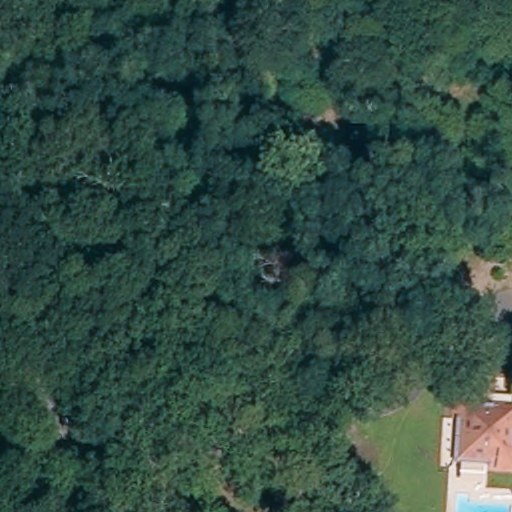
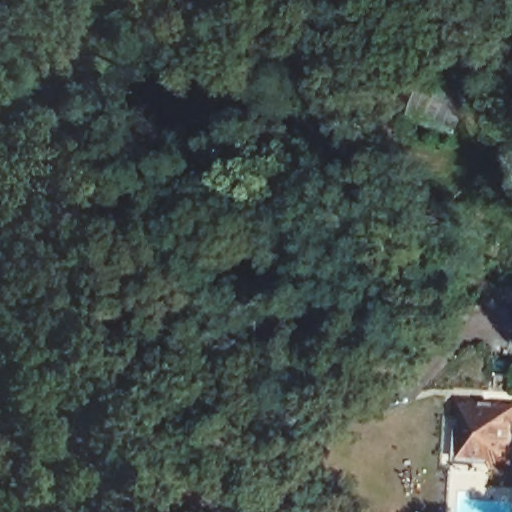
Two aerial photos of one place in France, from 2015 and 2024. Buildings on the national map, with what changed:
unchanged [(477,409),(477,417),(490,417),(490,409),(512,409),(512,431),(504,431),(503,452),(512,452),(512,472),(487,471),(487,461),(458,461),(460,422),(455,422),(455,409),(477,409)]

